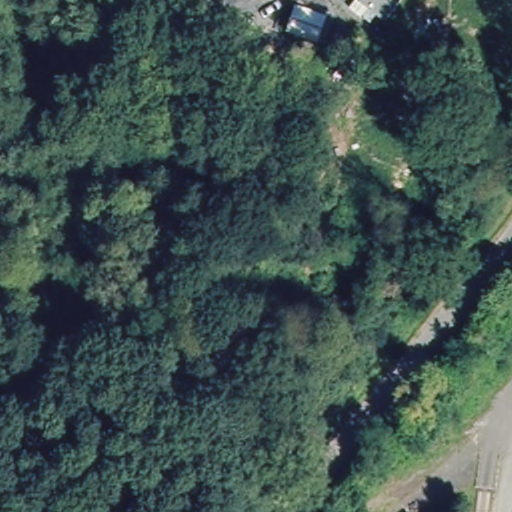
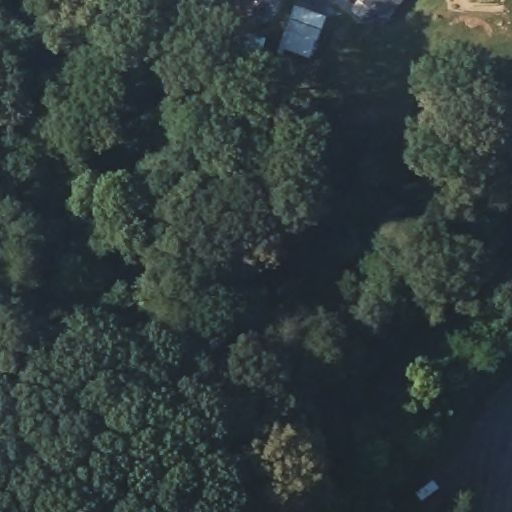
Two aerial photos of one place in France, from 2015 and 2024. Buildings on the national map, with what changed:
unchanged [(380,17),(357,0),(392,0),(380,17)]
unchanged [(327,15),(318,44),(285,33),(294,5),(327,15)]

